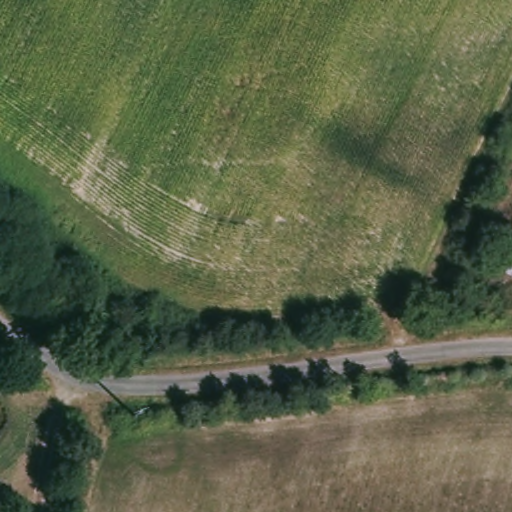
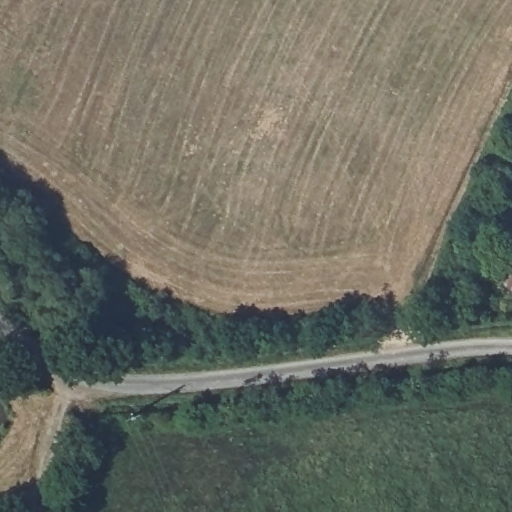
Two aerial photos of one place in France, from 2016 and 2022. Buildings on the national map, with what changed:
unchanged [(507,243),(512,245),(512,291),(492,283),(507,243)]

